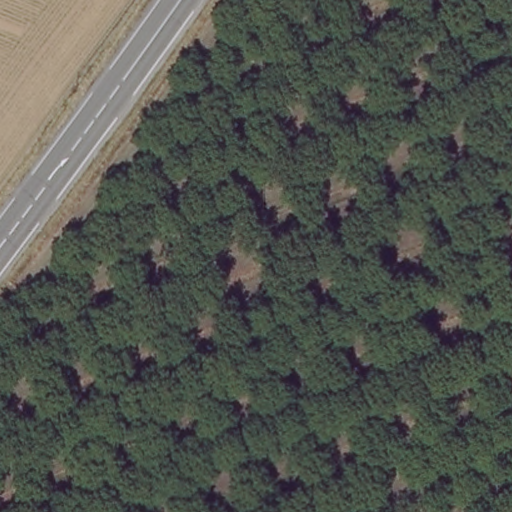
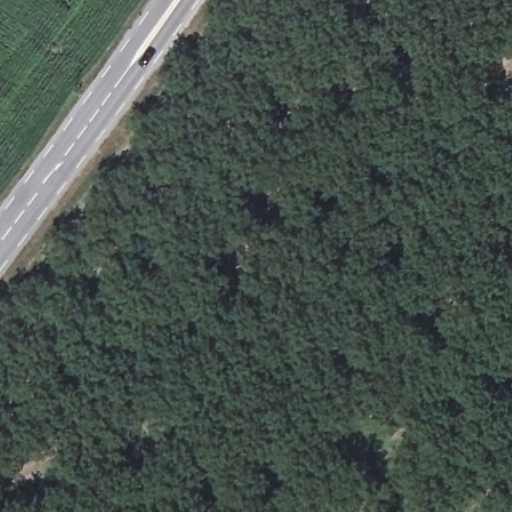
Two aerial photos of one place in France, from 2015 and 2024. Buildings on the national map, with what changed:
[]

